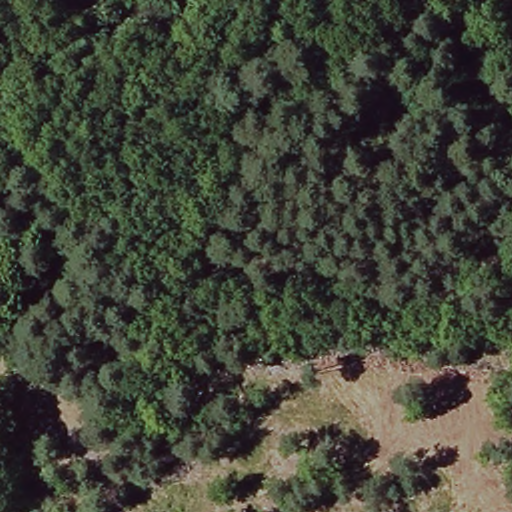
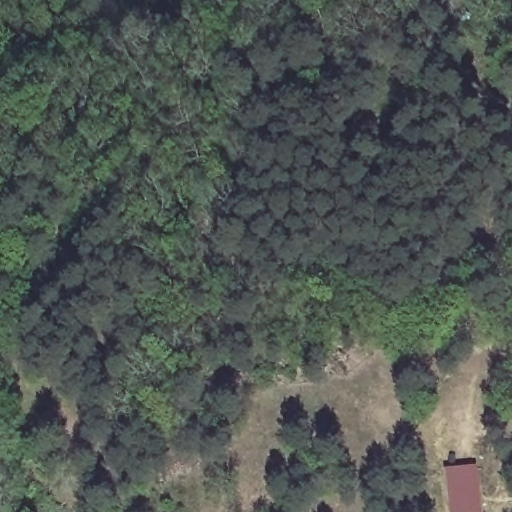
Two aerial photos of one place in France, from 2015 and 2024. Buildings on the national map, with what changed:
new [(481,512),(448,512),(443,470),(475,467),(481,512)]

